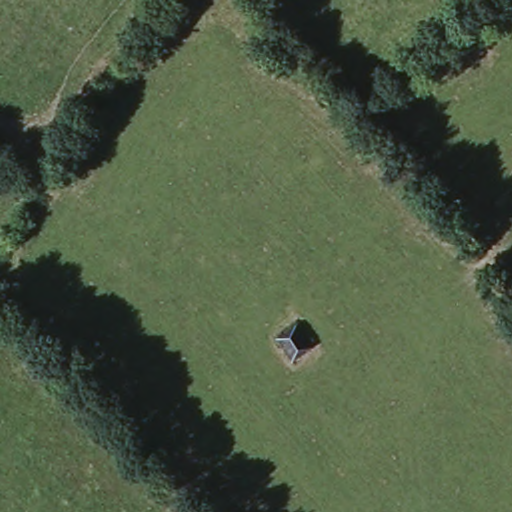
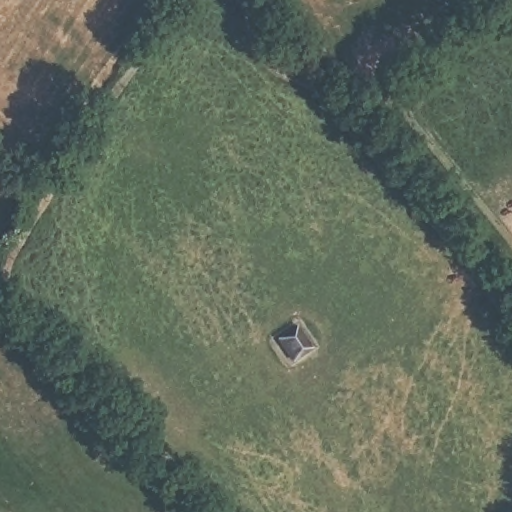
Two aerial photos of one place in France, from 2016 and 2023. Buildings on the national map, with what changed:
unchanged [(297,324),(309,345),(292,354),(280,334),(297,324)]

